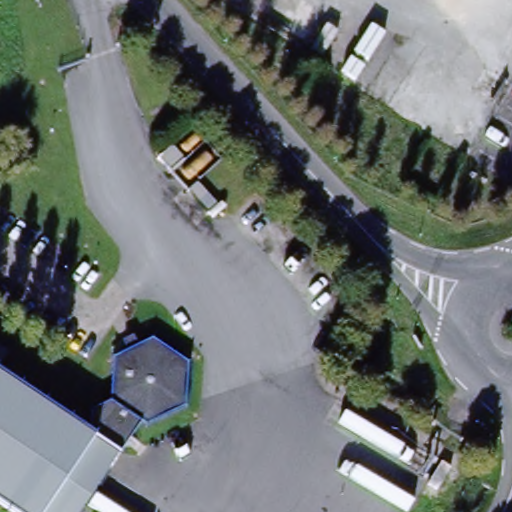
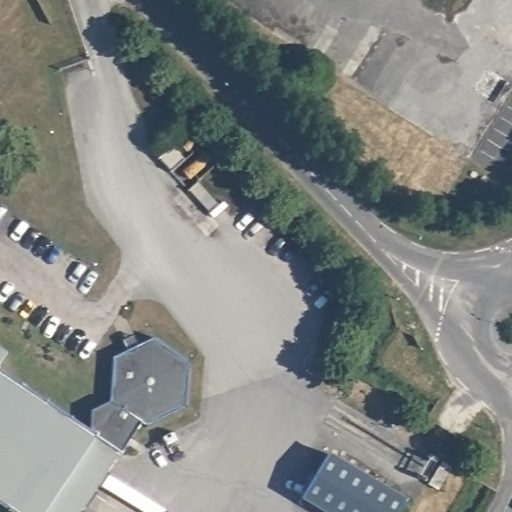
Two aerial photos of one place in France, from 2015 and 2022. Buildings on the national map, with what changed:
unchanged [(170,180),(157,166),(170,153),(183,167),(170,180)]
unchanged [(217,214),(207,223),(186,199),(196,190),(217,214)]
unchanged [(111,403),(115,360),(154,342),(192,369),(188,409),(148,430),(140,425),(120,453),(120,458),(82,512),(10,512),(0,505),(0,374),(90,436),(92,412),(111,403)]
unchanged [(0,366),(0,350),(7,355),(0,366)]
new [(332,458),(409,505),(405,512),(322,512),(305,502),(332,458)]

